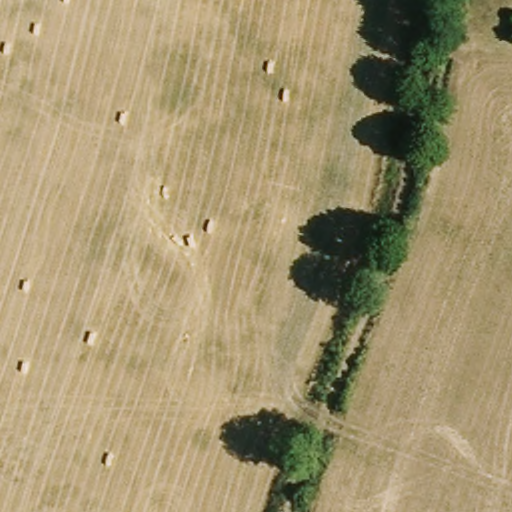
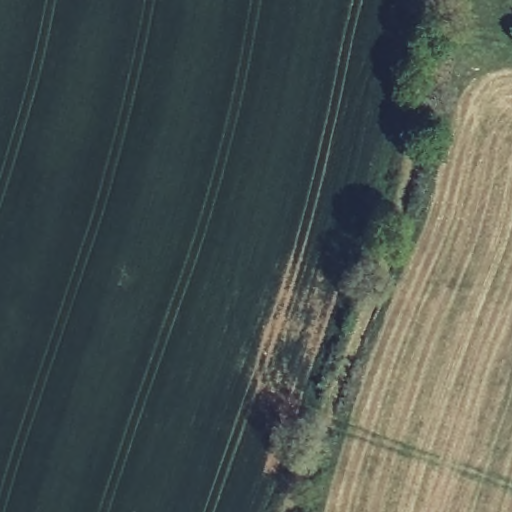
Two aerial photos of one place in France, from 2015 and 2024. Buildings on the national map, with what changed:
[]

